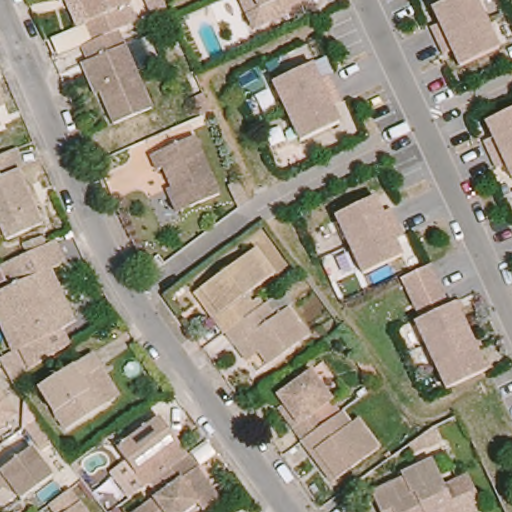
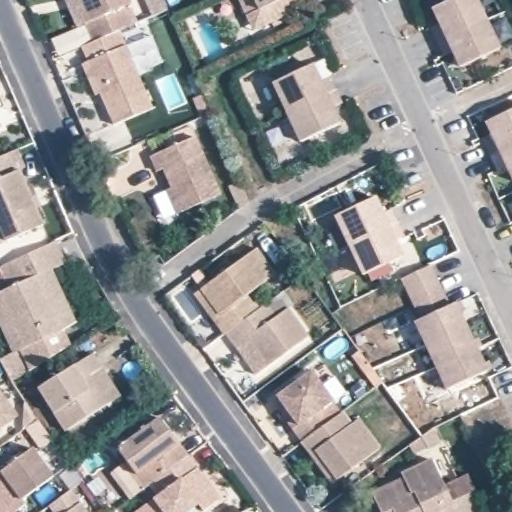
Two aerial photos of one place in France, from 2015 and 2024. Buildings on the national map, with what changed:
unchanged [(83,23),(88,20),(79,0),(127,0),(129,5),(122,8),(130,25),(117,31),(92,42),(83,23)]
unchanged [(159,0),(162,8),(148,16),(141,0),(159,0)]
unchanged [(242,0),(306,0),(310,9),(257,33),(242,0)]
unchanged [(438,24),(431,9),(449,0),(475,0),(485,19),(435,43),(430,29),(438,24)]
unchanged [(485,19),(498,49),(458,68),(451,51),(442,56),(435,43),(485,19)]
unchanged [(80,65),(85,63),(80,48),(92,42),(117,31),(151,109),(112,126),(99,94),(93,96),(80,65)]
unchanged [(280,113),(266,83),(306,64),(313,80),(322,76),(329,90),(280,113)]
unchanged [(335,103),(326,108),(334,124),(294,143),(280,113),(329,90),(335,103)]
unchanged [(482,143),(492,138),(485,122),(512,109),(512,145),(489,156),(482,143)]
unchanged [(165,187),(172,184),(164,164),(157,168),(150,152),(194,133),(219,192),(182,208),(175,210),(165,187)]
unchanged [(512,182),(505,165),(495,169),(489,156),(512,145),(512,182)]
unchanged [(9,153),(40,225),(3,241),(0,242),(0,156),(9,153)]
unchanged [(343,246),(329,216),(369,198),(376,214),(385,209),(392,223),(343,246)]
unchanged [(398,237),(389,240),(396,257),(356,275),(343,246),(392,223),(398,237)]
unchanged [(0,335),(0,288),(7,284),(0,268),(0,263),(43,243),(53,264),(42,269),(66,321),(55,332),(17,349),(8,354),(0,335)]
unchanged [(201,299),(256,257),(275,284),(245,307),(255,320),(225,342),(225,343),(212,328),(195,304),(201,299)]
unchanged [(395,284),(425,270),(444,310),(413,325),(395,284)]
unchanged [(444,310),(449,309),(460,331),(420,350),(408,328),(413,325),(444,310)]
unchanged [(265,313),(274,327),(287,318),(307,346),(267,376),(248,349),(236,356),(225,342),(255,320),(265,313)]
unchanged [(460,331),(470,354),(430,373),(420,350),(460,331)]
unchanged [(470,354),(481,376),(440,395),(430,373),(470,354)]
unchanged [(60,440),(34,396),(88,362),(98,377),(85,384),(92,394),(103,414),(60,440)]
unchanged [(277,420),(283,415),(276,407),(285,400),(310,382),(332,409),(317,422),(325,433),(301,451),(277,420)]
unchanged [(17,416),(0,429),(0,393),(17,416)]
unchanged [(152,485),(142,473),(139,475),(120,449),(164,417),(173,430),(182,442),(192,456),(155,483),(152,485)]
unchanged [(311,464),(301,451),(325,433),(342,421),(351,433),(358,428),(380,458),(337,490),(334,493),(311,464)]
unchanged [(434,426),(440,440),(426,447),(413,453),(408,444),(420,436),(434,426)]
unchanged [(51,477),(20,501),(8,486),(0,491),(0,473),(31,449),(51,477)]
unchanged [(201,468),(207,476),(225,499),(208,512),(202,504),(191,512),(142,512),(165,494),(155,483),(192,456),(201,468)]
unchanged [(368,501),(402,485),(400,480),(429,467),(440,491),(453,485),(465,512),(373,512),(368,501)]
unchanged [(81,512),(48,512),(43,506),(64,489),(81,512)]

